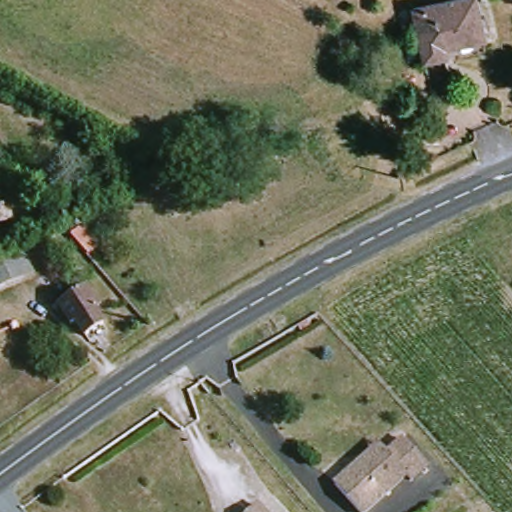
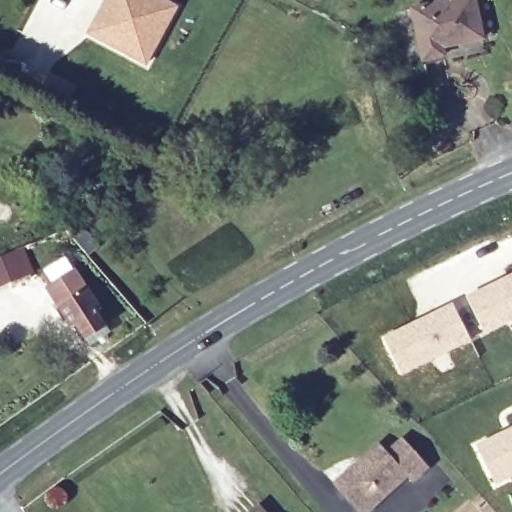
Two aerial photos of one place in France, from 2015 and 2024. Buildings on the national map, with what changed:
new [(181,9),(170,31),(151,66),(94,35),(112,0),(166,0),(181,9)]
unchanged [(491,34),(483,36),(459,40),(462,57),(434,62),(421,2),(431,0),(484,0),(489,23),(491,34)]
unchanged [(0,277),(0,251),(15,246),(24,267),(0,277)]
new [(512,320),(485,333),(465,296),(512,272),(512,320)]
unchanged [(90,338),(81,325),(77,327),(64,310),(90,294),(102,310),(98,313),(107,328),(90,338)]
new [(454,301),(473,338),(400,374),(382,336),(454,301)]
new [(512,475),(495,483),(474,444),(512,425),(512,475)]
unchanged [(385,445),(392,451),(396,454),(410,442),(434,467),(419,481),(415,477),(375,512),(368,512),(343,486),(370,459),(385,445)]
unchanged [(269,512),(253,512),(262,505),(269,512)]

